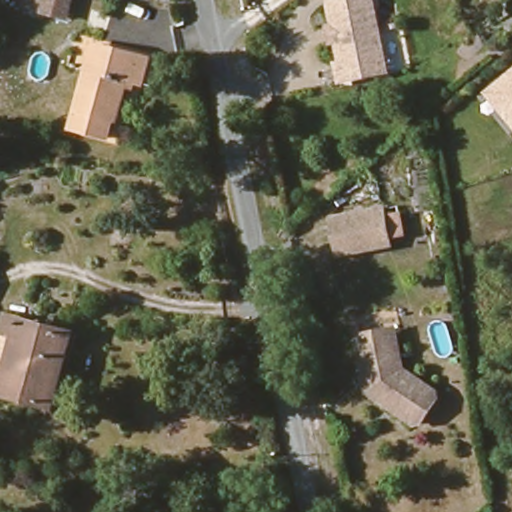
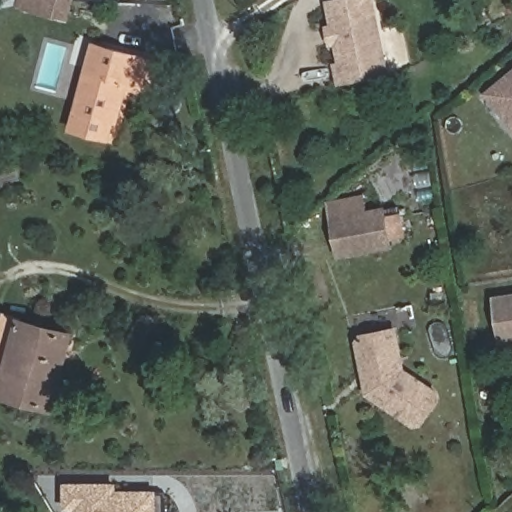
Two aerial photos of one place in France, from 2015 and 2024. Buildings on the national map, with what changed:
unchanged [(61,20),(31,13),(34,0),(66,0),(61,20)]
unchanged [(392,76),(344,84),(341,66),(347,65),(337,4),(358,0),(380,0),(392,76)]
unchanged [(73,124),(76,111),(90,65),(97,41),(112,46),(153,59),(145,84),(131,80),(120,119),(115,117),(113,122),(110,135),(73,124)]
unchanged [(484,92),(512,69),(512,127),(484,92)]
unchanged [(386,246),(337,255),(330,220),(380,210),(386,246)]
new [(500,345),(493,295),(512,292),(512,343),(500,345)]
unchanged [(46,399),(1,389),(15,324),(60,332),(46,399)]
unchanged [(407,372),(444,393),(445,400),(431,425),(424,426),(372,395),(363,344),(367,338),(400,331),(407,372)]
new [(157,490),(157,493),(164,493),(164,512),(76,512),(76,510),(64,510),(63,482),(117,482),(117,489),(157,490)]

